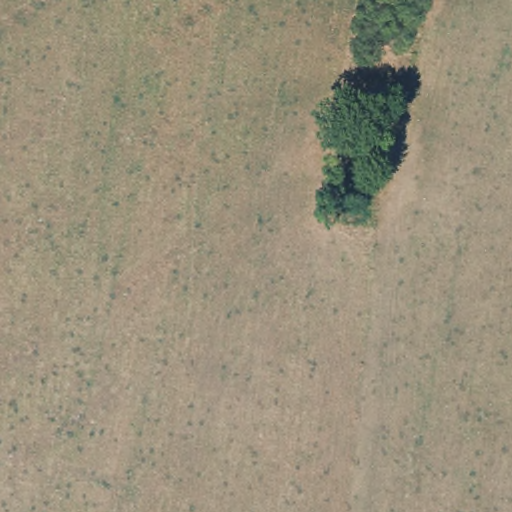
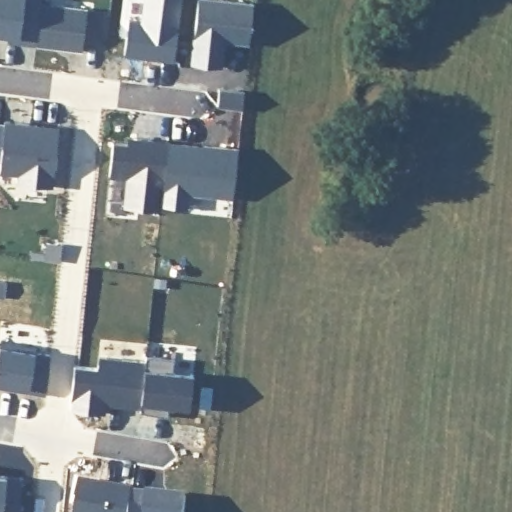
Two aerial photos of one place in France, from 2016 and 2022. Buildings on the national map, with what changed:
new [(9,35),(0,34),(0,0),(41,0),(41,2),(86,8),(82,50),(8,42),(9,35)]
new [(128,19),(141,21),(144,0),(181,0),(174,61),(124,54),(128,19)]
new [(199,0),(235,0),(254,2),(249,42),(225,41),(223,66),(192,63),(199,0)]
new [(19,176),(14,173),(0,171),(0,162),(0,159),(4,125),(5,120),(59,127),(54,186),(19,183),(19,176)]
new [(0,159),(0,125),(4,125),(0,159)]
new [(161,204),(160,210),(124,206),(128,178),(109,176),(114,142),(128,143),(129,136),(238,147),(232,198),(189,193),(188,208),(161,204)]
new [(36,346),(36,352),(49,354),(44,394),(0,387),(0,345),(0,341),(36,346)]
new [(75,365),(99,367),(99,356),(146,361),(146,355),(175,358),(175,371),(193,373),(190,407),(169,404),(167,415),(141,412),(142,408),(106,404),(105,412),(71,409),(75,365)]
new [(19,512),(0,512),(0,474),(23,478),(19,512)]
new [(133,489),(132,494),(146,496),(147,493),(186,497),(184,512),(75,512),(79,481),(133,489)]

